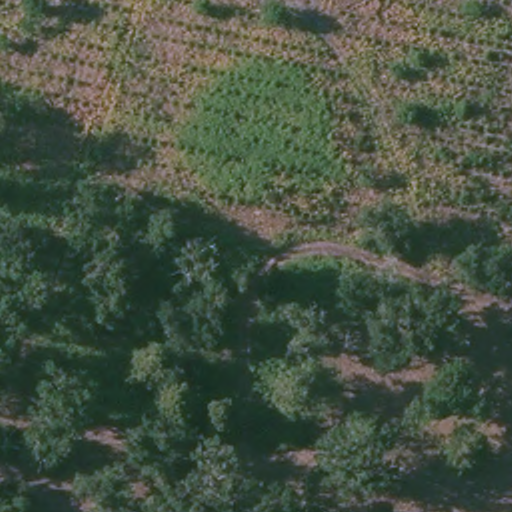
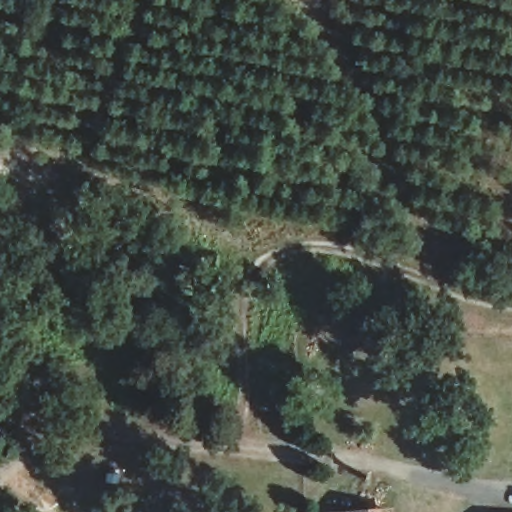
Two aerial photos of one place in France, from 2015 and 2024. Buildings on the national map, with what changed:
unchanged [(393,512),(370,512),(370,510),(392,509),(393,512)]
unchanged [(336,512),(335,511),(370,510),(370,512),(336,512)]

